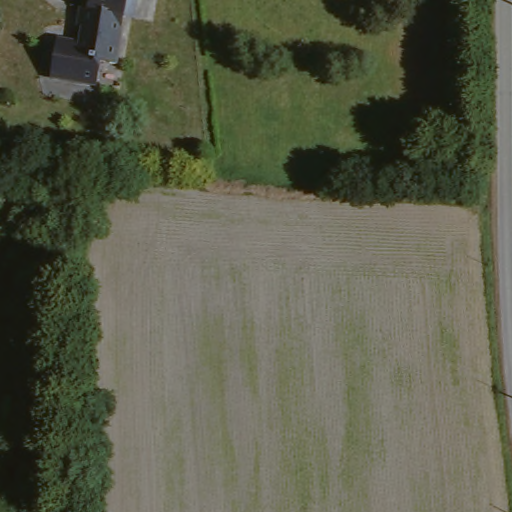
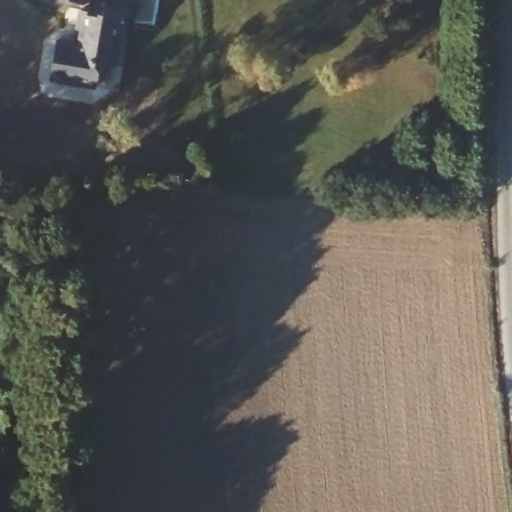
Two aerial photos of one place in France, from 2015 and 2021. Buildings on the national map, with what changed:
unchanged [(92,95),(47,86),(55,46),(78,51),(81,37),(75,36),(79,15),(84,17),(89,0),(107,0),(125,6),(136,8),(136,12),(133,27),(121,25),(112,72),(97,70),(92,95)]

